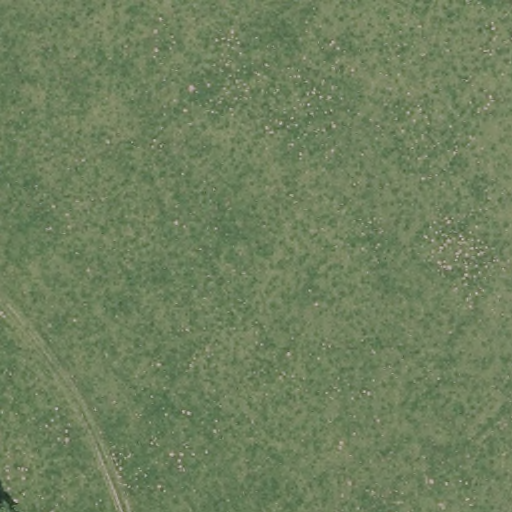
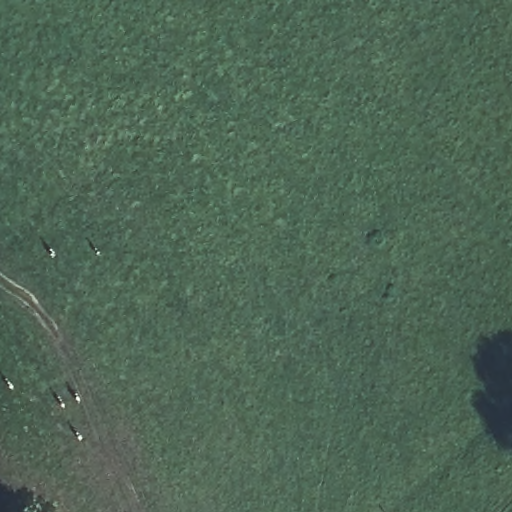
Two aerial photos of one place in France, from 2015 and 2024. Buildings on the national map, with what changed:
[]

